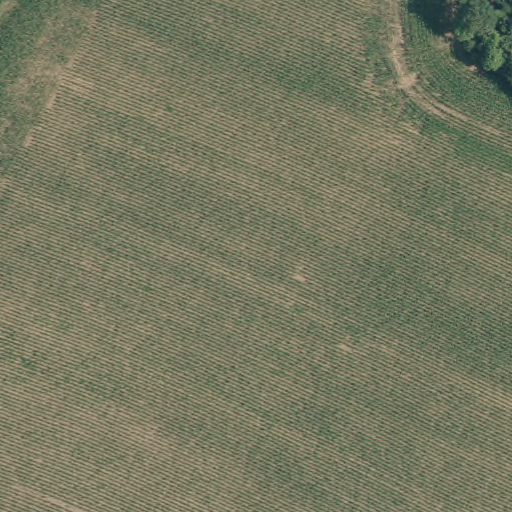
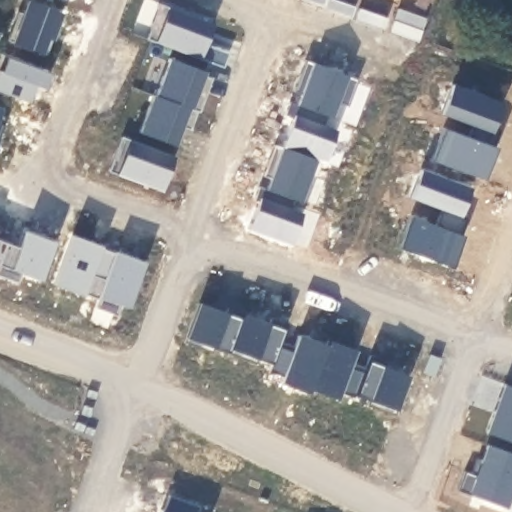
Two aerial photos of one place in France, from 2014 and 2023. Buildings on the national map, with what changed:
new [(17,12),(22,14),(27,0),(61,13),(46,55),(7,41),(17,12)]
new [(159,4),(212,24),(211,25),(210,24),(197,57),(199,58),(199,59),(146,39),(159,4)]
new [(44,89),(35,85),(28,102),(0,91),(0,54),(40,69),(50,73),(44,89)]
new [(205,71),(203,76),(211,79),(206,94),(199,112),(196,111),(155,95),(169,59),(205,71)]
new [(305,60),(358,79),(348,106),(337,102),(331,117),(327,115),(297,105),(301,95),(293,92),(305,60)]
new [(452,84),(502,103),(493,127),(500,130),(494,146),(468,136),(472,125),(441,114),(452,84)]
new [(152,95),(155,95),(196,111),(190,130),(182,127),(175,145),(139,132),(152,95)]
new [(292,118),(284,115),(289,102),(297,105),(327,115),(323,125),(336,130),(324,163),(316,160),(281,147),(292,118)]
new [(4,109),(0,119),(0,108),(4,109)]
new [(3,125),(0,133),(0,125),(3,125)]
new [(443,127),(468,136),(494,146),(496,147),(483,179),(431,160),(443,127)]
new [(274,144),(281,147),(316,160),(300,202),(292,199),(266,190),(270,180),(262,176),(274,144)]
new [(420,169),(470,188),(460,215),(467,218),(461,235),(436,225),(441,210),(410,198),(420,169)]
new [(258,202),(253,200),(258,186),(266,190),(292,199),(289,209),(301,214),(289,246),(247,230),(258,202)]
new [(410,215),(436,225),(461,235),(463,235),(458,251),(457,251),(451,267),(398,248),(410,215)]
new [(5,243),(18,247),(25,231),(39,236),(55,242),(40,281),(21,274),(17,283),(0,276),(0,256),(5,243)]
new [(71,235),(101,246),(100,248),(115,253),(97,300),(83,294),(83,295),(53,285),(71,235)]
new [(5,243),(0,256),(0,241),(5,243)]
new [(97,300),(115,253),(115,251),(145,262),(128,307),(121,305),(117,316),(94,307),(97,300)]
new [(199,303),(226,313),(227,308),(242,314),(228,353),(214,348),(212,353),(184,342),(199,303)]
new [(257,359),(255,363),(228,353),(242,314),(269,324),(271,319),(286,325),(280,341),(281,341),(294,346),(298,335),(326,345),(309,389),(308,394),(280,383),(283,377),(268,371),(271,365),(257,359)]
new [(384,361),(383,365),(409,375),(394,415),(367,405),(369,400),(354,395),(354,398),(340,392),(337,400),(309,389),(326,345),(328,340),(355,350),(351,362),(364,367),(369,355),(384,361)]
new [(430,355),(440,359),(433,376),(423,372),(430,355)]
new [(498,411),(501,401),(498,400),(504,384),(512,387),(512,442),(486,432),(495,410),(498,411)]
new [(476,475),(487,445),(512,454),(512,487),(504,507),(457,490),(464,471),(476,475)]
new [(163,510),(169,495),(199,506),(197,512),(160,512),(160,510),(163,510)]

